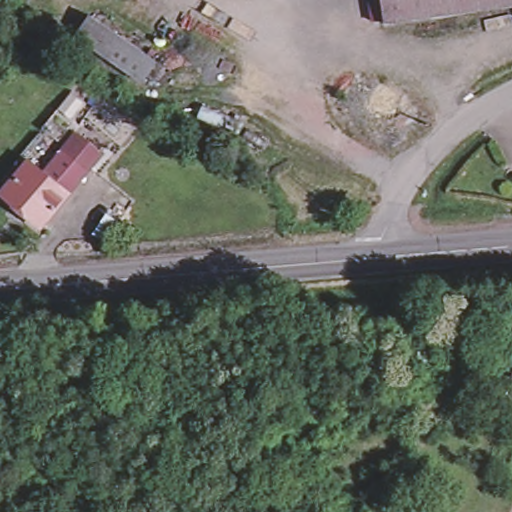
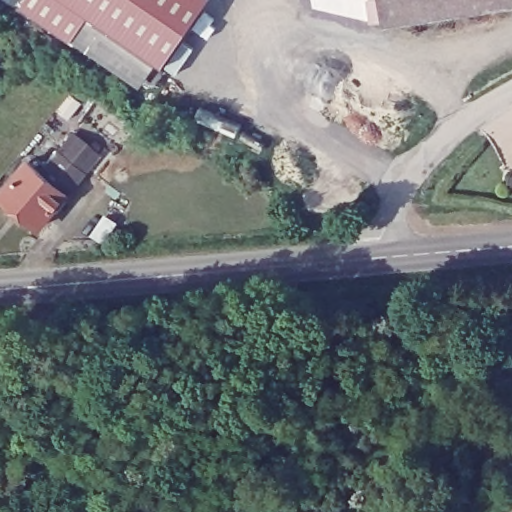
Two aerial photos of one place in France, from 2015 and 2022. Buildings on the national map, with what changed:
new [(164,62),(95,16),(75,41),(25,0),(209,0),(164,62)]
unchanged [(512,7),(382,25),(379,0),(512,0),(512,7)]
unchanged [(75,41),(95,16),(164,62),(145,89),(75,41)]
unchanged [(8,200),(36,165),(44,171),(62,148),(80,161),(61,185),(32,220),(8,200)]

